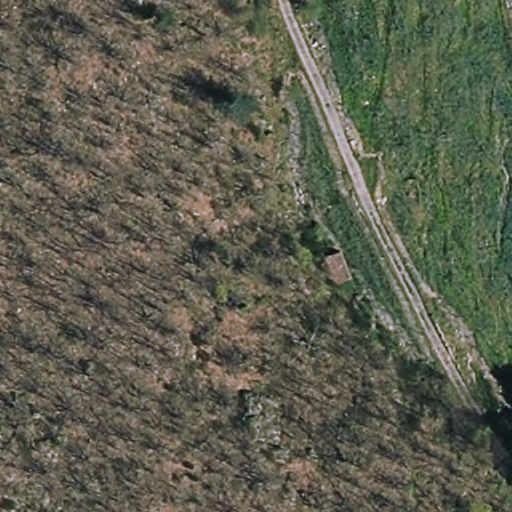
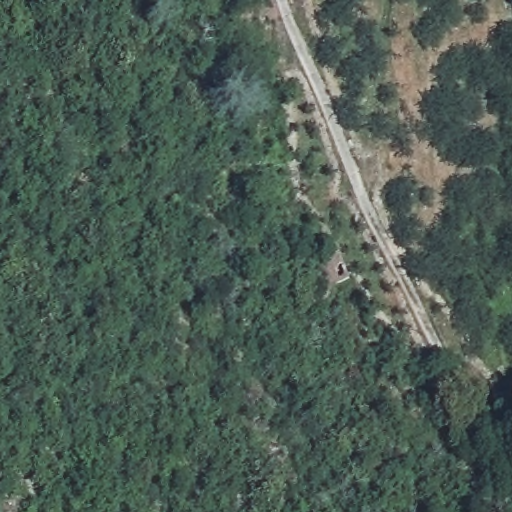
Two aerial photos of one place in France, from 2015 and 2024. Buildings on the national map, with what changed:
unchanged [(349,280),(327,288),(317,263),(340,254),(349,280)]

